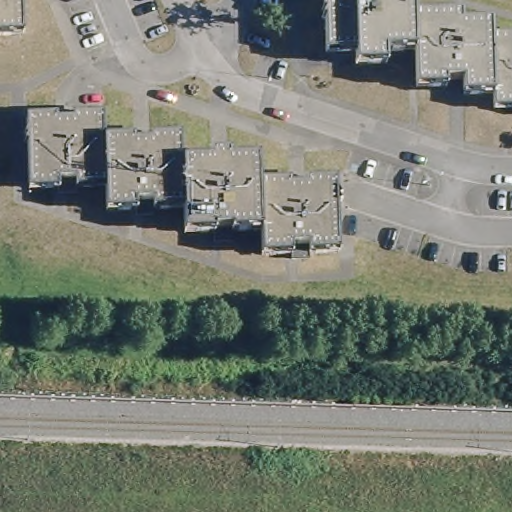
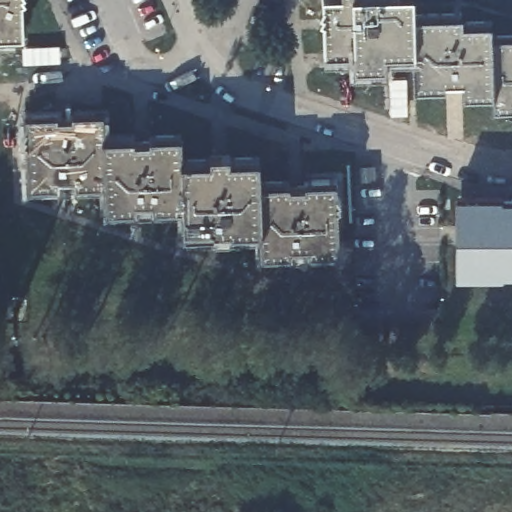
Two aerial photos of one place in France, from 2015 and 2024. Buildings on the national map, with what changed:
unchanged [(0,32),(0,0),(18,0),(19,32),(0,32)]
unchanged [(350,66),(351,55),(323,55),(322,24),(319,21),(322,15),(318,12),(323,5),(322,0),(410,0),(411,55),(395,55),(379,55),(379,66),(350,66)]
unchanged [(466,97),(466,82),(444,82),(444,90),(412,90),(411,55),(410,0),(490,0),(491,9),(491,97),(466,97)]
unchanged [(512,112),(492,112),(491,97),(491,9),(512,9),(512,112)]
unchanged [(75,187),(75,193),(59,194),(58,187),(30,187),(29,112),(60,112),(60,116),(75,116),(75,111),(104,111),(104,135),(105,187),(75,187)]
unchanged [(156,209),(156,215),(153,215),(133,214),(133,209),(106,210),(105,199),(105,187),(104,135),(134,135),(134,138),(134,142),(152,141),(152,135),(183,135),(183,138),(183,158),(183,209),(156,209)]
unchanged [(212,158),(213,165),(228,165),(228,158),(260,158),(260,182),(261,235),(233,235),(233,242),(213,241),(209,241),(209,235),(183,235),(183,209),(183,158),(212,158)]
new [(359,169),(374,167),(375,179),(359,180),(359,169)]
unchanged [(289,181),(289,188),(305,188),(306,181),(334,181),(334,258),(306,258),(306,265),(288,265),(288,258),(261,258),(261,235),(260,182),(289,181)]
new [(512,201),(512,273),(462,272),(463,201),(512,201)]

